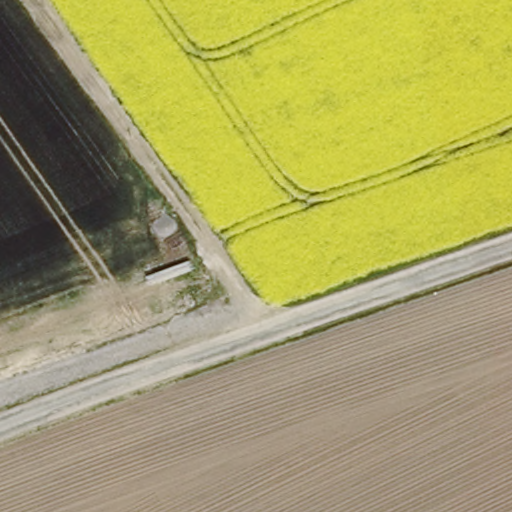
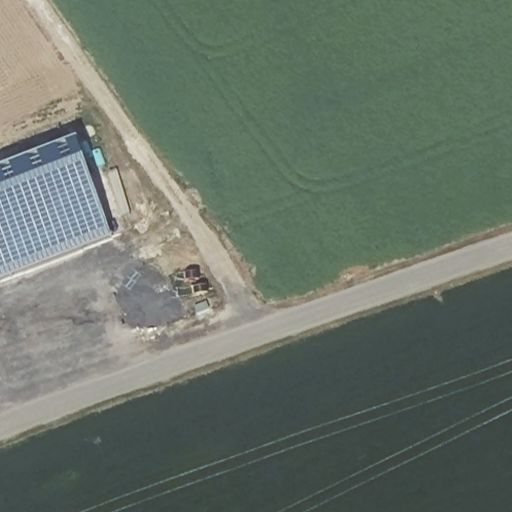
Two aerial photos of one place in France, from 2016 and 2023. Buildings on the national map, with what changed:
new [(112,239),(0,280),(0,171),(75,142),(112,239)]

